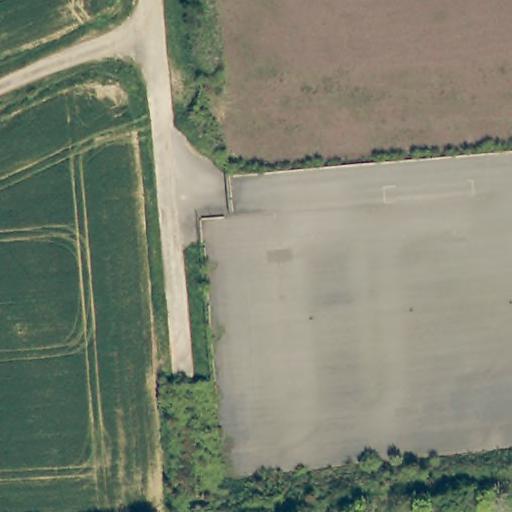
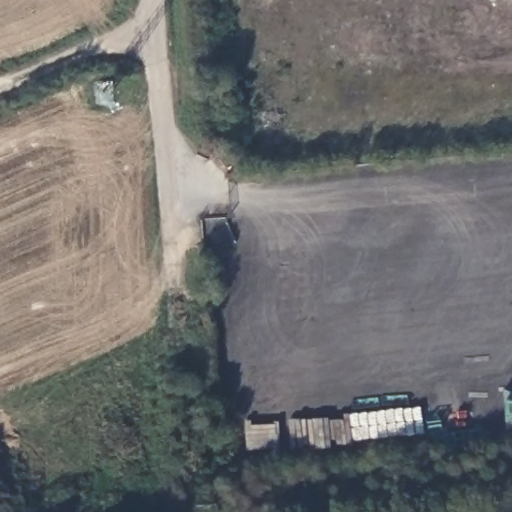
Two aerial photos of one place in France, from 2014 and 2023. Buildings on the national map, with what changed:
[]

